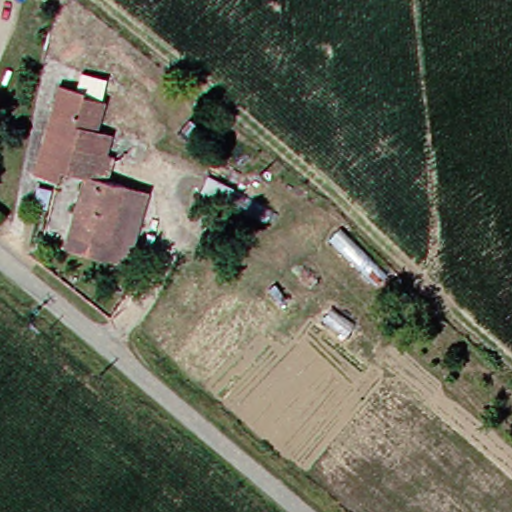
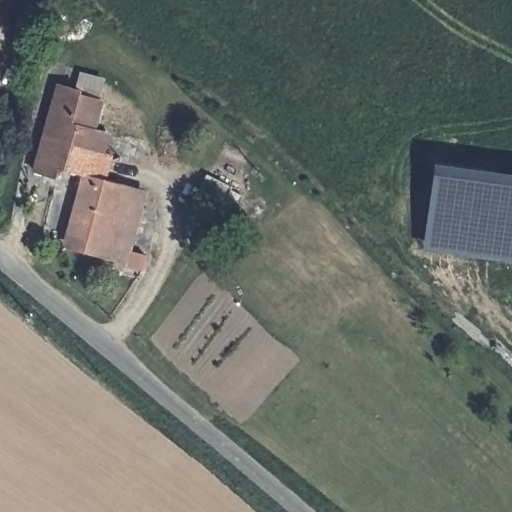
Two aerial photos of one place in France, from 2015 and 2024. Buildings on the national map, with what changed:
unchanged [(43,114),(51,84),(99,100),(94,131),(43,114)]
unchanged [(55,246),(59,232),(75,170),(59,165),(55,175),(29,165),(43,114),(94,131),(106,137),(105,156),(99,175),(113,181),(111,196),(122,201),(109,247),(105,263),(55,246)]
new [(438,162),(512,173),(512,256),(426,245),(438,162)]

